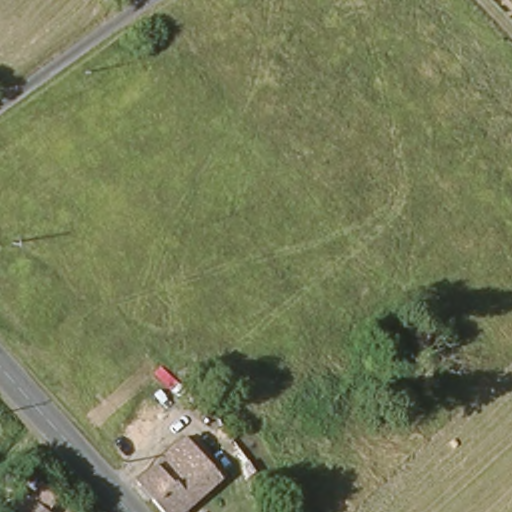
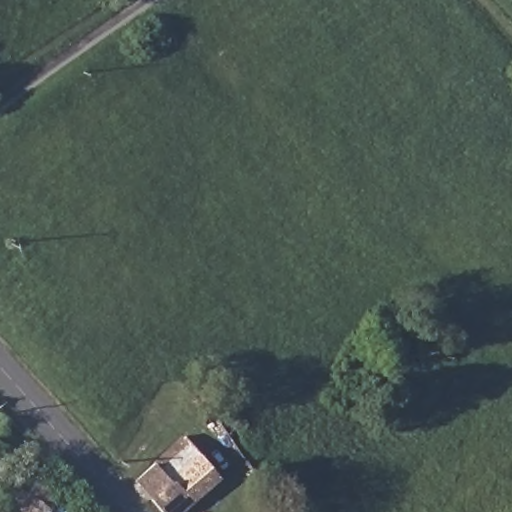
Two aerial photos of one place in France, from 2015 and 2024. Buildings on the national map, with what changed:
unchanged [(137,482),(189,438),(209,462),(201,470),(213,485),(182,512),(163,512),(137,482)]
unchanged [(6,482),(50,511),(49,512),(0,512),(0,491),(6,482)]

